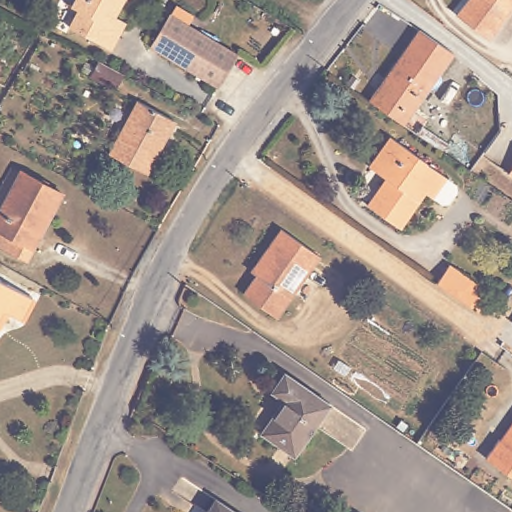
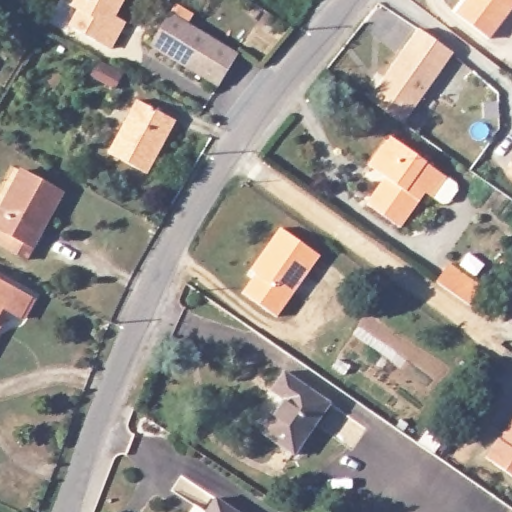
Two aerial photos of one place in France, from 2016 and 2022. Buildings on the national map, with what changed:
unchanged [(77,0),(129,0),(122,14),(132,19),(114,48),(69,21),(79,1),(77,0)]
unchanged [(458,14),(469,0),(512,0),(512,6),(490,35),(458,14)]
unchanged [(239,54),(219,90),(149,47),(170,12),(239,54)]
unchanged [(368,96),(426,15),(460,40),(413,101),(427,111),(415,129),(368,96)]
unchanged [(82,61),(106,75),(100,85),(75,71),(82,61)]
unchanged [(107,145),(139,99),(176,120),(146,170),(107,145)]
unchanged [(428,159),(427,159),(448,174),(447,175),(457,181),(458,187),(452,196),(446,197),(437,190),(436,191),(428,186),(404,221),(371,199),(390,171),(372,160),(392,133),(428,159)]
unchanged [(512,164),(512,173),(507,170),(512,164)]
unchanged [(24,166),(62,190),(25,257),(0,243),(0,207),(24,166)]
unchanged [(279,314),(247,292),(261,270),(254,265),(283,224),(322,250),(279,314)]
unchanged [(439,281),(450,265),(485,287),(473,305),(439,281)]
unchanged [(31,292),(21,311),(2,300),(0,304),(0,276),(31,292)]
unchanged [(302,451),(266,427),(286,398),(272,389),(284,370),(334,404),(302,451)]
unchanged [(502,435),(512,421),(512,469),(489,452),(502,435)]
unchanged [(206,512),(217,495),(241,512),(206,512)]

